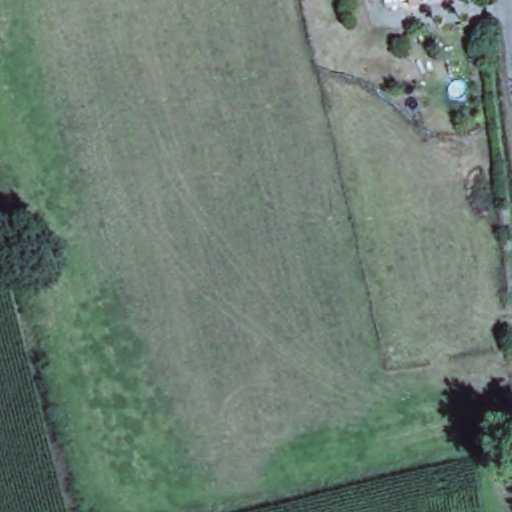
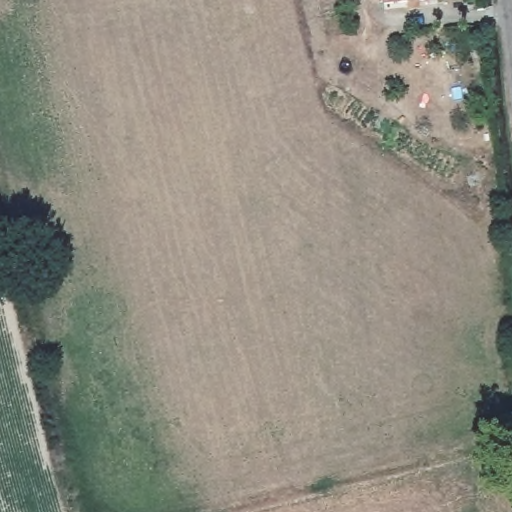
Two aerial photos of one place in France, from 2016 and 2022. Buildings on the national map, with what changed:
[]

